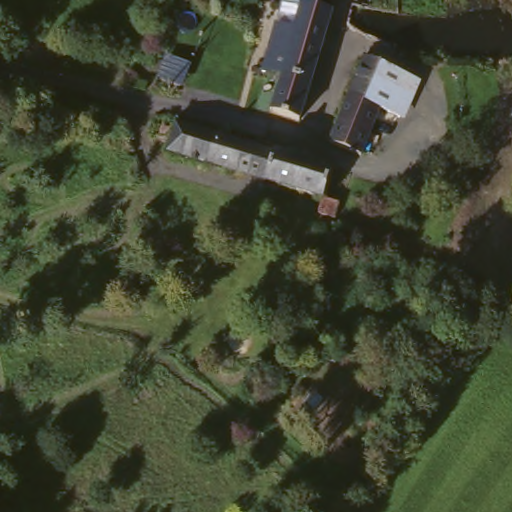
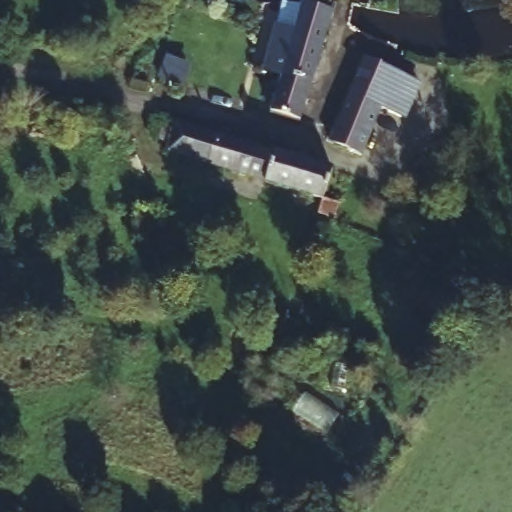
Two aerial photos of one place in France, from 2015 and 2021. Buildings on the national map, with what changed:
unchanged [(286,84),(267,78),(286,14),(289,7),(329,22),(308,90),(296,126),(274,119),(286,84)]
unchanged [(326,145),(348,89),(363,58),(379,66),(413,84),(394,131),(374,123),(358,161),(326,145)]
unchanged [(308,174),(310,175),(320,179),(309,207),(160,148),(174,121),(308,174)]

